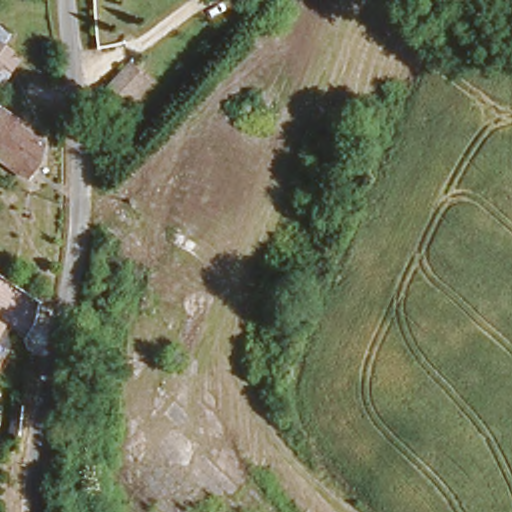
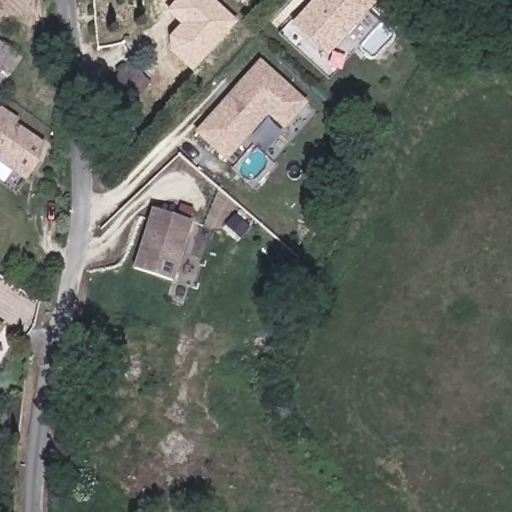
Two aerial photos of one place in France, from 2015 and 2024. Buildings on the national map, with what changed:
new [(173,55),(169,36),(179,25),(165,11),(175,0),(214,0),(238,22),(191,73),(173,55)]
new [(290,25),(313,0),(380,0),(327,58),(290,25)]
unchanged [(0,62),(0,56),(3,58),(0,62)]
new [(284,130),(267,115),(226,162),(194,133),(261,59),(309,102),(284,130)]
new [(125,65),(135,75),(141,72),(151,82),(126,110),(103,89),(125,65)]
unchanged [(0,80),(0,66),(7,71),(0,80)]
unchanged [(0,113),(11,122),(9,125),(38,146),(35,164),(24,179),(0,161),(0,113)]
new [(174,282),(132,270),(151,208),(193,220),(174,282)]

